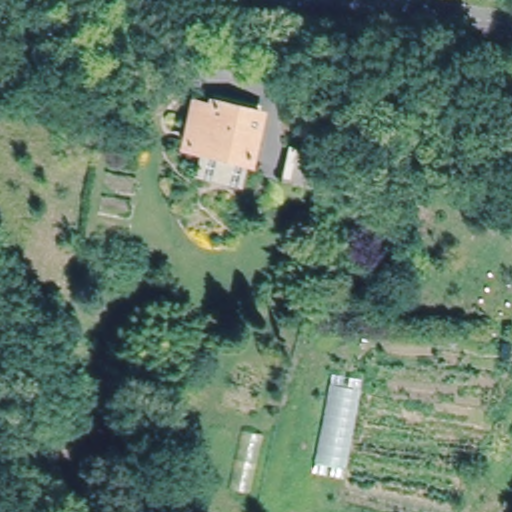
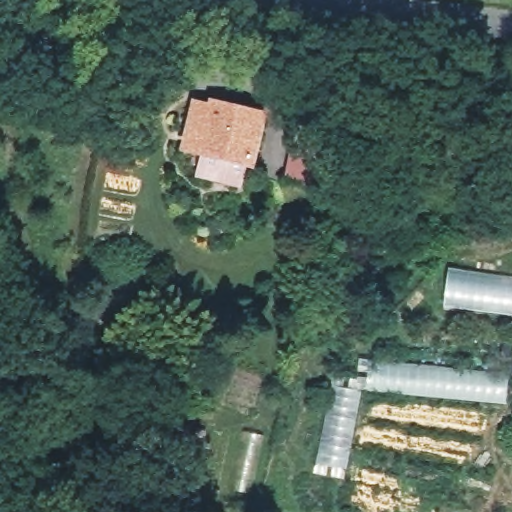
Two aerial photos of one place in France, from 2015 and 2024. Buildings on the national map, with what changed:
unchanged [(194,105),(208,108),(210,101),(261,115),(250,162),(184,146),(194,105)]
new [(447,266),(512,275),(512,316),(441,307),(447,266)]
new [(508,373),(506,405),(366,391),(369,360),(508,373)]
new [(361,390),(346,468),(316,463),(330,385),(361,390)]
new [(263,435),(249,497),(228,492),(241,432),(263,435)]

